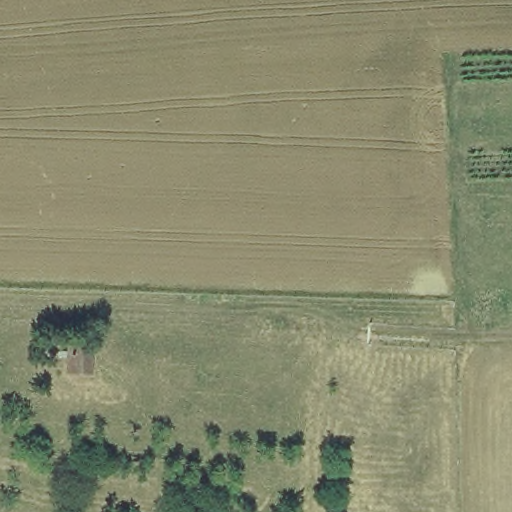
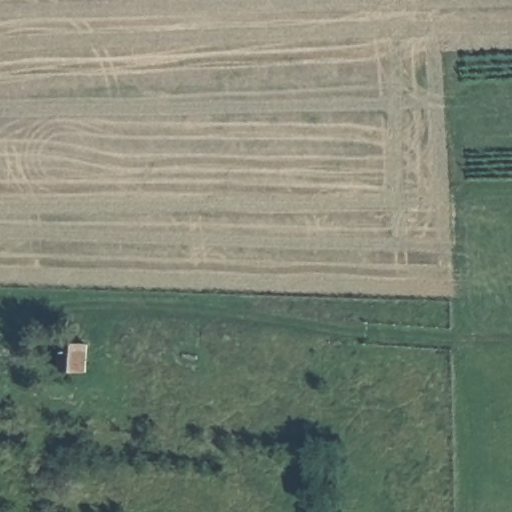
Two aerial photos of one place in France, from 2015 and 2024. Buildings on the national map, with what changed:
unchanged [(60,345),(93,345),(93,377),(61,373),(60,345)]

